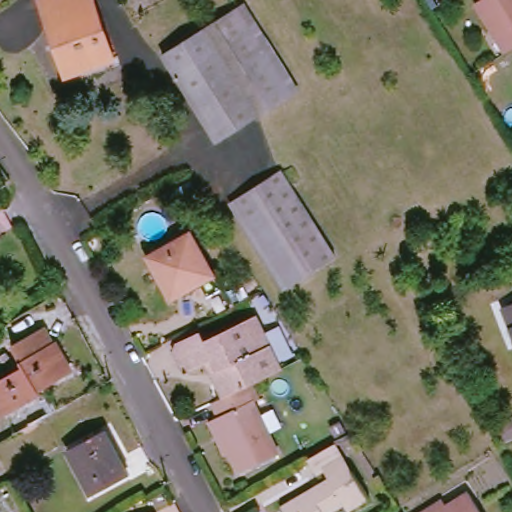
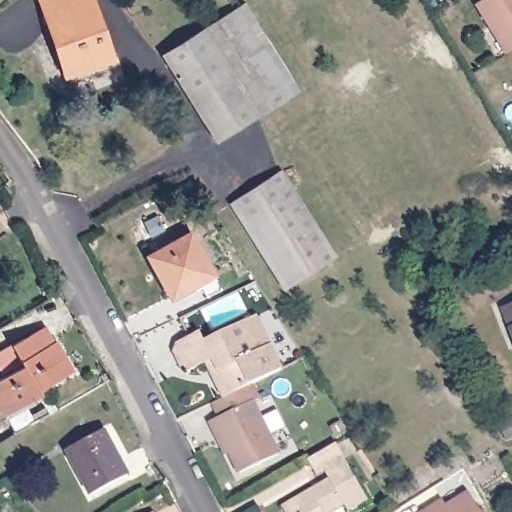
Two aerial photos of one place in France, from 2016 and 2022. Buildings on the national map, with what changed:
unchanged [(52,16),(46,18),(40,0),(93,0),(113,60),(72,74),(52,16)]
unchanged [(476,3),(481,0),(512,0),(512,50),(507,53),(476,3)]
unchanged [(248,5),(303,90),(265,115),(211,29),(248,5)]
unchanged [(222,143),(168,58),(211,29),(265,115),(222,143)]
unchanged [(235,209),(286,177),(341,263),(289,295),(235,209)]
unchanged [(149,257),(191,234),(213,275),(172,298),(149,257)]
unchanged [(509,315),(512,314),(512,322),(509,315)]
unchanged [(256,389),(236,399),(228,403),(219,385),(226,382),(217,364),(196,375),(186,372),(179,357),(183,348),(205,337),(209,346),(261,320),(287,374),(256,389)]
unchanged [(0,386),(23,373),(11,352),(43,334),(53,349),(54,348),(73,378),(40,397),(42,400),(5,422),(0,413),(0,386)]
unchanged [(214,428),(218,426),(224,423),(217,409),(228,403),(236,399),(256,389),(264,405),(259,408),(284,460),(244,479),(234,458),(229,461),(214,428)]
unchanged [(103,436),(118,461),(114,462),(126,482),(92,501),(68,456),(103,436)]
unchanged [(295,508),(294,507),(334,484),(329,474),(321,478),(313,464),(341,448),(372,503),(356,512),(351,512),(349,508),(341,512),(287,512),(295,508)]
unchanged [(449,500),(452,506),(474,492),(487,512),(429,512),(449,500)]

